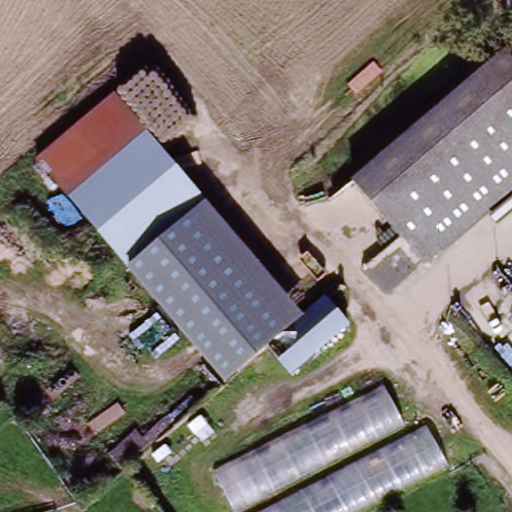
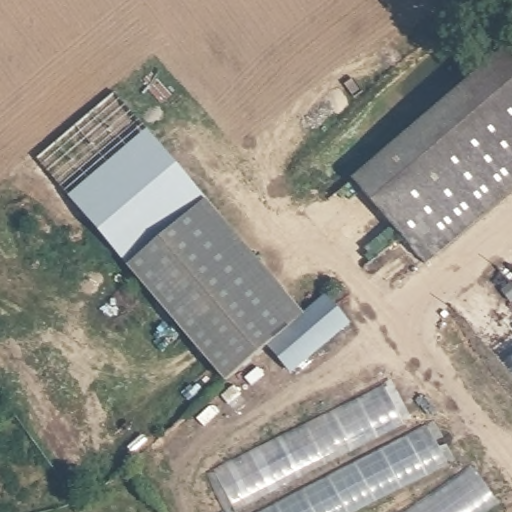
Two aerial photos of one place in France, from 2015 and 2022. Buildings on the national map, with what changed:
unchanged [(365,215),(341,188),(496,56),(512,75),(512,89),(366,214),(365,215)]
unchanged [(210,204),(130,271),(38,160),(117,95),(210,204)]
unchanged [(512,101),(512,150),(423,222),(402,240),(377,210),(512,101)]
unchanged [(402,240),(423,222),(512,150),(512,197),(425,268),(402,240)]
unchanged [(205,208),(303,318),(223,385),(130,271),(205,208)]
unchanged [(290,375),(271,352),(340,297),(359,318),(290,375)]
unchanged [(408,433),(431,421),(454,462),(357,512),(229,512),(209,470),(381,385),(402,423),(408,433)]
new [(499,505),(488,512),(408,512),(472,467),(499,505)]

